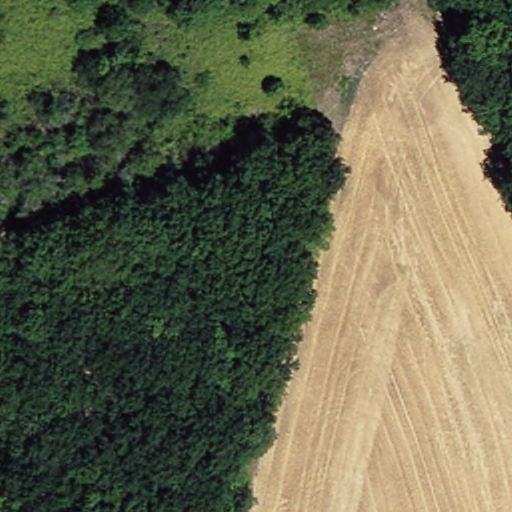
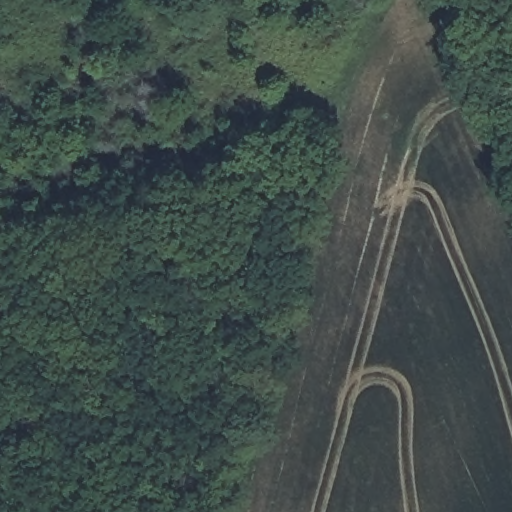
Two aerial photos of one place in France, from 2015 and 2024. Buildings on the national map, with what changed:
[]

